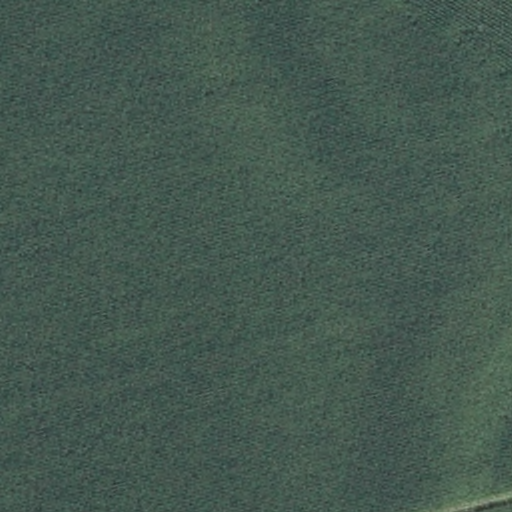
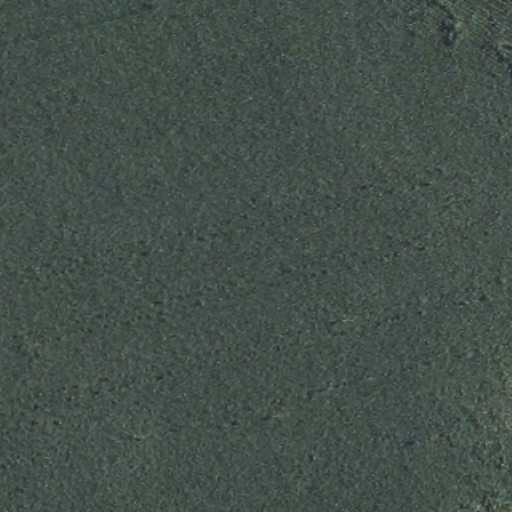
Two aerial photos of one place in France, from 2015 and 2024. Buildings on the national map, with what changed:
[]

